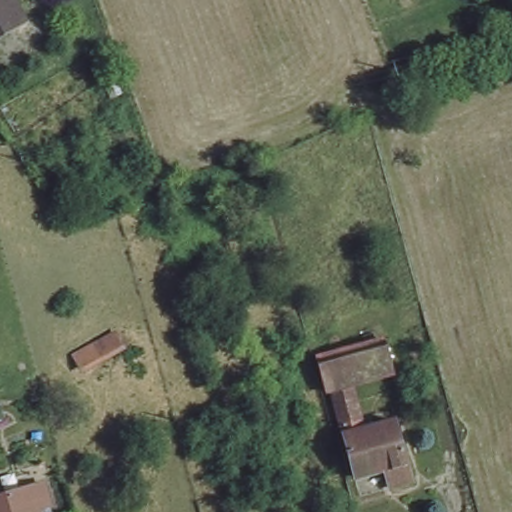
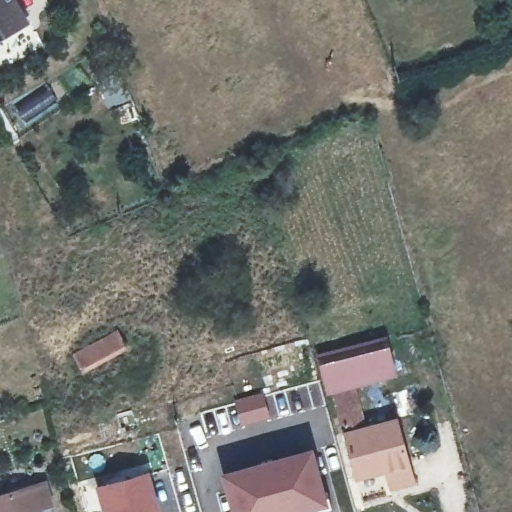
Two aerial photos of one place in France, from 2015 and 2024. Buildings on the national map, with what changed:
unchanged [(0,37),(0,0),(10,0),(24,24),(0,37)]
unchanged [(125,347),(86,361),(80,348),(120,333),(125,347)]
unchanged [(334,389),(330,390),(321,357),(387,340),(395,372),(358,382),(334,389)]
unchanged [(346,433),(334,389),(358,382),(370,426),(346,433)]
new [(265,391),(272,418),(241,426),(234,398),(265,391)]
unchanged [(394,483),(389,468),(359,475),(346,433),(370,426),(398,418),(414,478),(394,483)]
new [(314,446),(330,506),(308,512),(230,512),(220,471),(284,453),(314,446)]
new [(160,512),(102,512),(95,485),(151,470),(160,512)]
unchanged [(39,508),(39,512),(0,512),(0,495),(44,482),(48,505),(39,508)]

